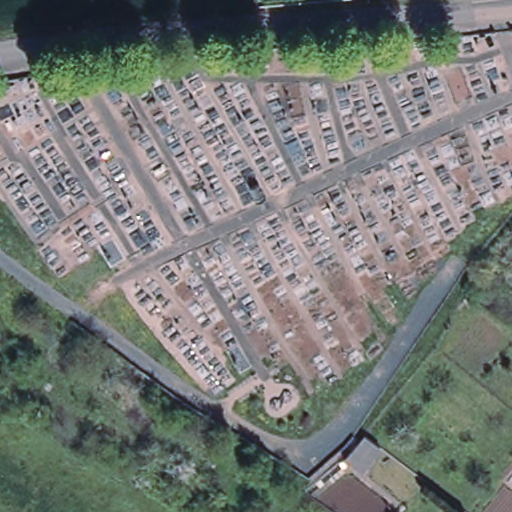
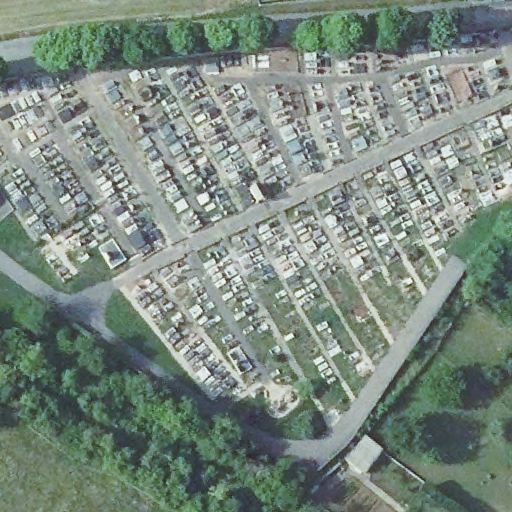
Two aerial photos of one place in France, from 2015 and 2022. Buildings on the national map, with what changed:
unchanged [(368,441),(384,453),(365,477),(347,463),(355,457),(368,441)]

